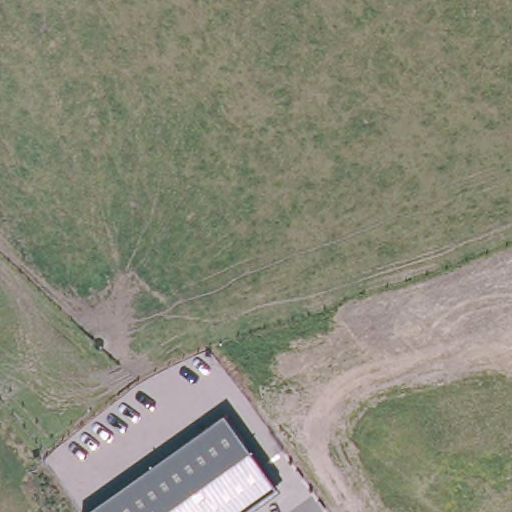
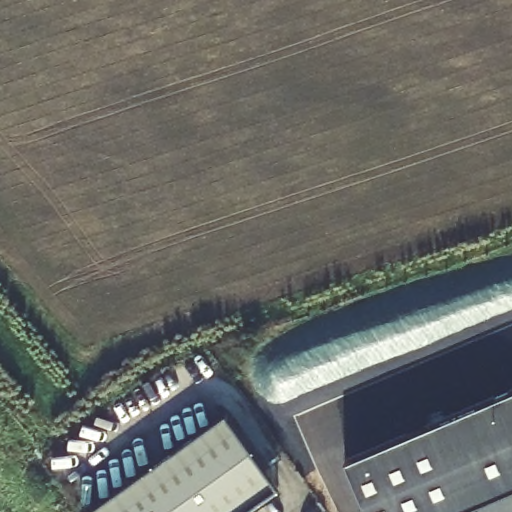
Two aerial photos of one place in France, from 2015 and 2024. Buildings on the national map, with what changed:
new [(512,391),(512,488),(456,512),(368,512),(347,462),(512,391)]
unchanged [(243,512),(89,512),(226,414),(277,488),(243,512)]

